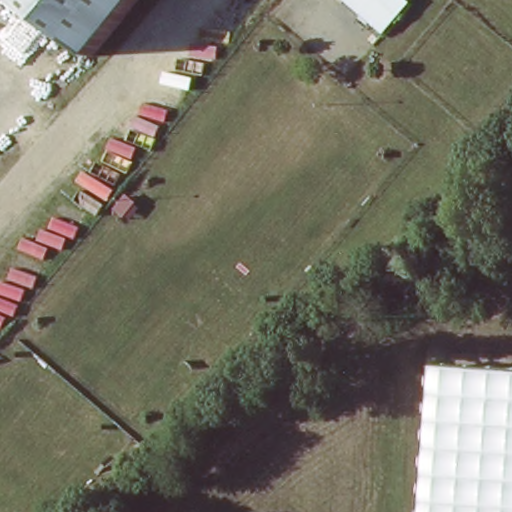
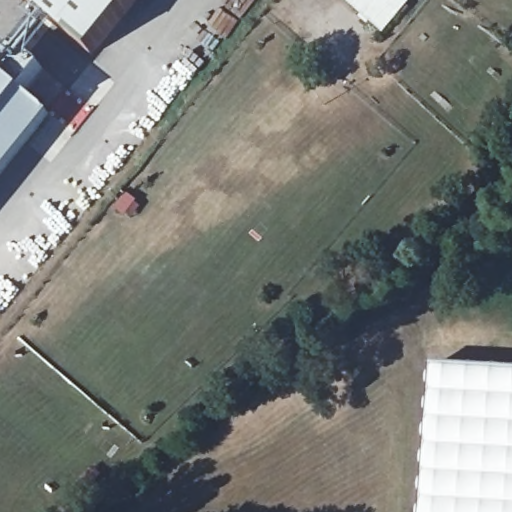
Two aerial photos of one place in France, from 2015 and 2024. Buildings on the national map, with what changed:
unchanged [(93,56),(23,0),(138,0),(93,56)]
unchanged [(388,36),(347,0),(411,0),(416,5),(388,36)]
new [(0,180),(0,76),(5,80),(23,54),(43,69),(25,95),(50,118),(0,180)]
unchanged [(419,512),(430,364),(512,370),(512,512),(419,512)]

